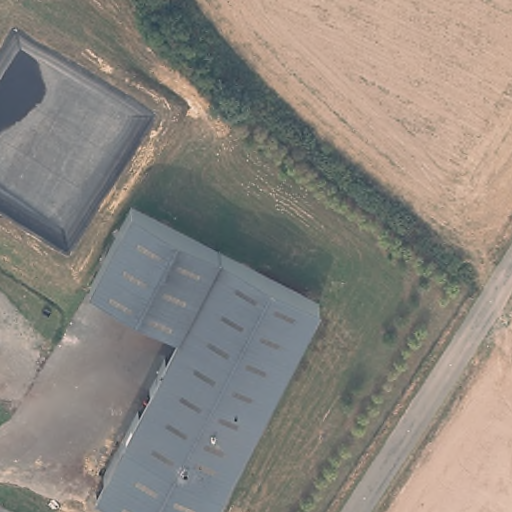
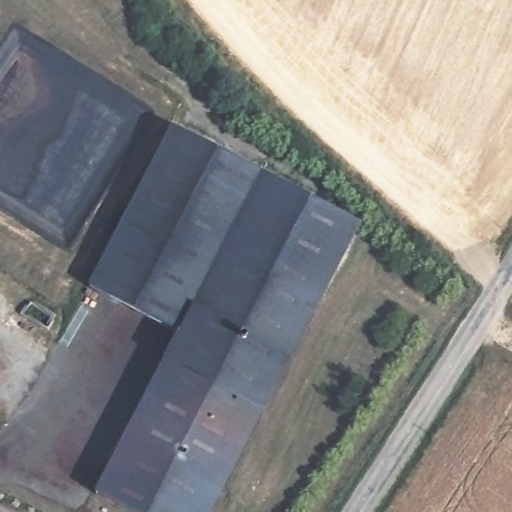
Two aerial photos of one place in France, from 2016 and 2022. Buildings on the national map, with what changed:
new [(128,205),(168,126),(359,223),(319,305),(221,254),(131,206),(128,205)]
unchanged [(89,286),(131,206),(221,254),(180,333),(89,286)]
unchanged [(319,305),(221,491),(123,441),(221,254),(319,305)]
unchanged [(210,512),(135,512),(96,492),(123,441),(221,491),(210,512)]

